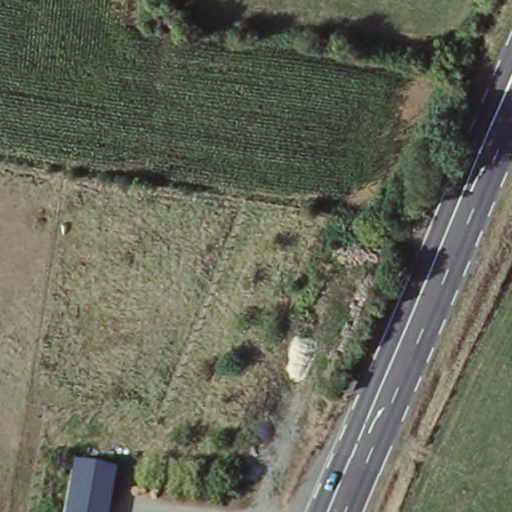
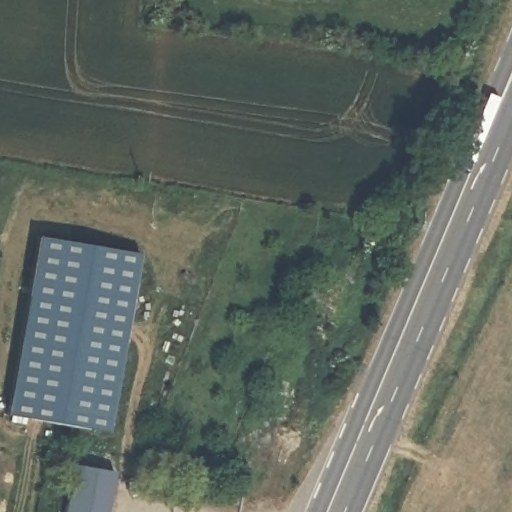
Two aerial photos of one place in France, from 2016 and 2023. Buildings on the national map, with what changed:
new [(40,232),(144,251),(110,429),(7,410),(40,232)]
unchanged [(123,474),(112,512),(69,512),(82,465),(123,474)]

